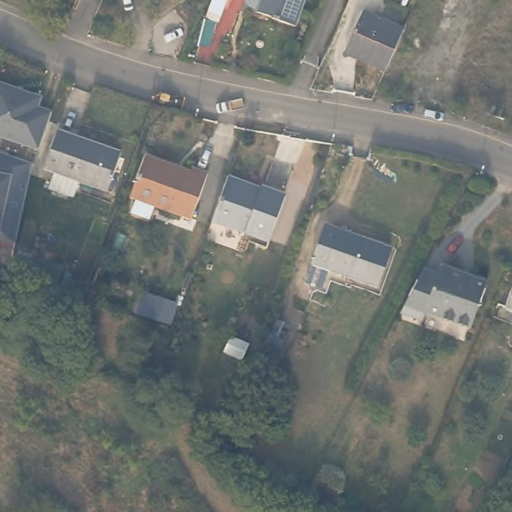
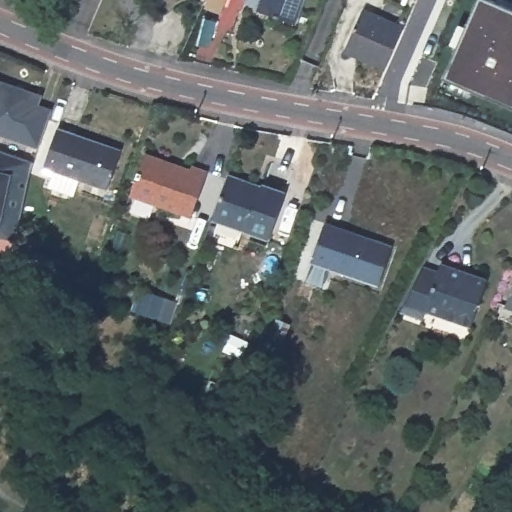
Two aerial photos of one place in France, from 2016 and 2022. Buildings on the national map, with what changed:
unchanged [(296,28),(264,14),(265,12),(258,9),(253,4),(254,0),(309,0),(296,28)]
new [(476,0),(490,0),(512,10),(512,109),(443,77),(476,0)]
unchanged [(350,47),(368,7),(407,23),(390,64),(350,47)]
unchanged [(41,147),(0,135),(0,82),(42,95),(39,105),(53,109),(41,147)]
unchanged [(121,147),(107,187),(85,178),(80,176),(74,193),(48,183),(54,167),(46,164),(60,125),(121,147)]
unchanged [(34,169),(16,237),(0,232),(0,150),(35,163),(34,169)]
unchanged [(191,169),(192,166),(208,171),(194,216),(130,195),(145,154),(191,169)]
unchanged [(260,183),(262,180),(285,189),(269,236),(213,216),(228,172),(260,183)]
unchanged [(398,243),(383,282),(337,266),(331,283),(315,277),(334,221),(398,243)]
unchanged [(30,277),(14,272),(20,249),(37,255),(30,277)]
unchanged [(435,263),(458,272),(488,283),(485,290),(470,331),(426,313),(422,322),(396,312),(419,268),(432,273),(435,263)]
unchanged [(512,291),(512,307),(506,304),(512,291)]
unchanged [(162,304),(180,310),(181,310),(174,329),(156,323),(162,304)]
unchanged [(276,314),(289,320),(262,376),(250,370),(276,314)]

